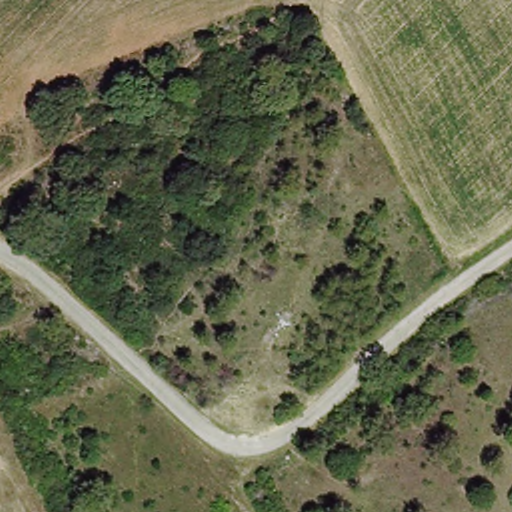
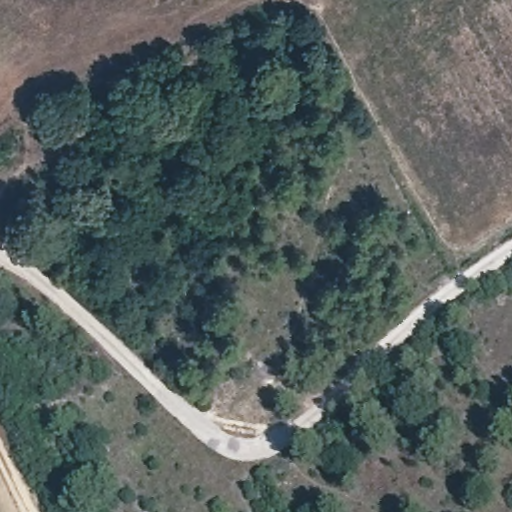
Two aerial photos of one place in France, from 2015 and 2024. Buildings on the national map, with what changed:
[]

